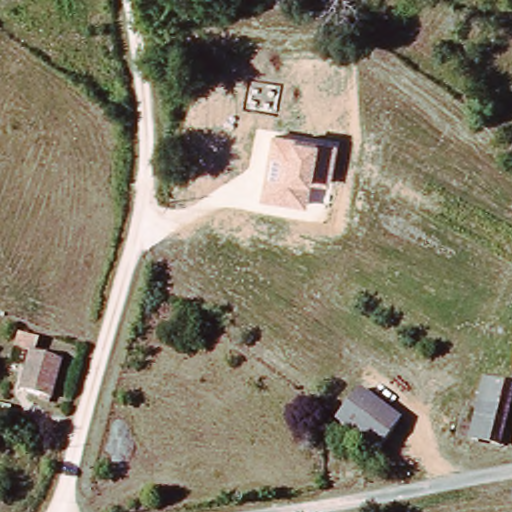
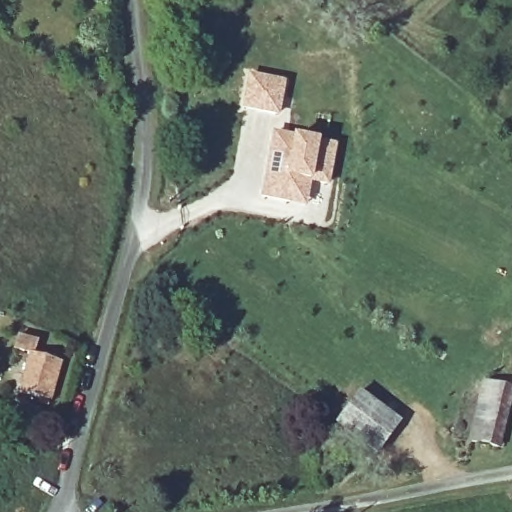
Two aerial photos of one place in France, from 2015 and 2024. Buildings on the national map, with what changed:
new [(286,80),(279,117),(241,110),(248,73),(286,80)]
unchanged [(339,141),(331,185),(311,182),(307,206),(259,197),(272,129),(339,141)]
unchanged [(44,397),(16,389),(27,350),(55,358),(44,397)]
unchanged [(507,391),(494,445),(465,438),(478,384),(507,391)]
unchanged [(394,420),(371,451),(332,422),(355,391),(394,420)]

